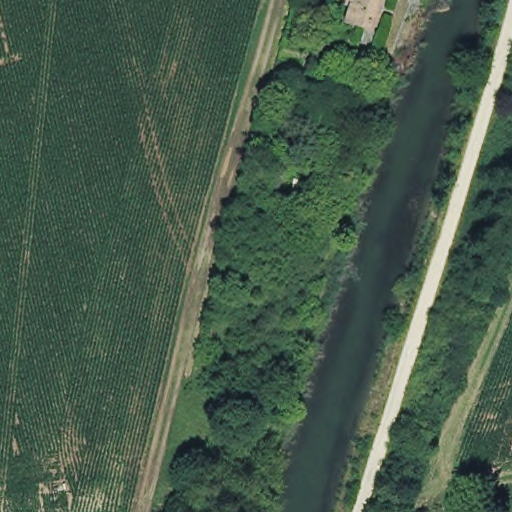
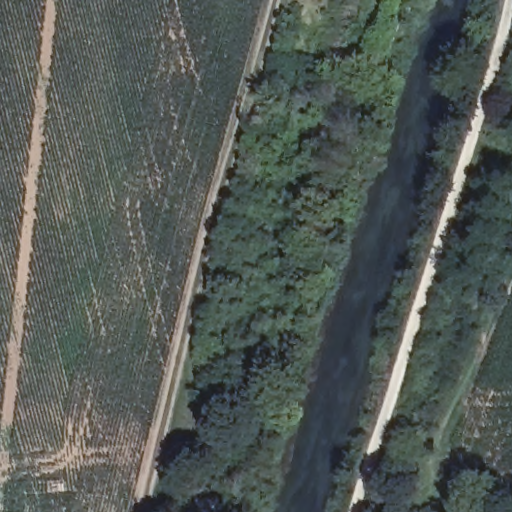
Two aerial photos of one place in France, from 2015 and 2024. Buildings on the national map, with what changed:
unchanged [(338,26),(346,1),(341,0),(374,0),(364,34),(338,26)]

